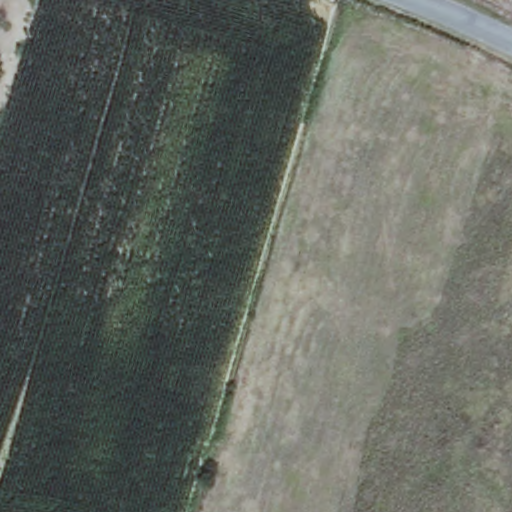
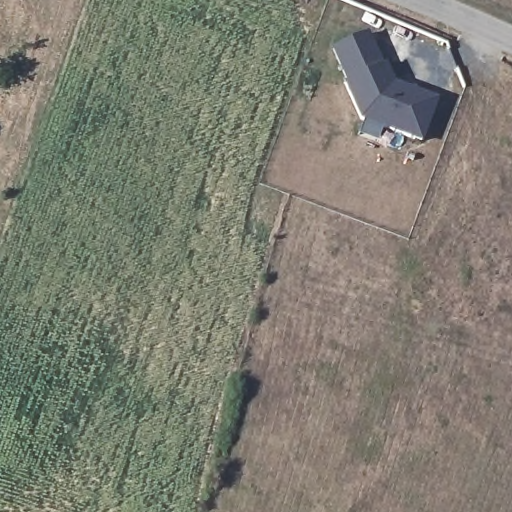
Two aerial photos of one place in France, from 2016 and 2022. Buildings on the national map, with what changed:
new [(375,32),(390,64),(393,63),(403,85),(407,87),(408,84),(444,97),(429,138),(369,116),(353,81),(356,80),(342,47),(375,32)]

